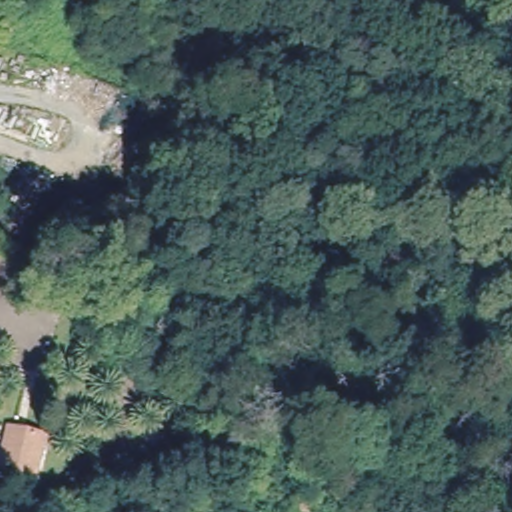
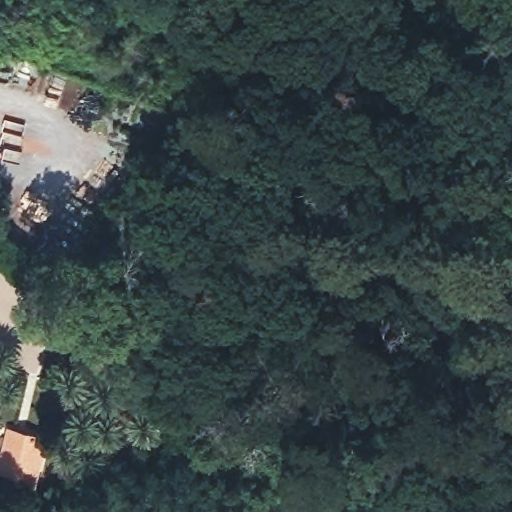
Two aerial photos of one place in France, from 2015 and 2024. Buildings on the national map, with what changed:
unchanged [(25,429),(44,434),(37,473),(17,468),(25,429)]

